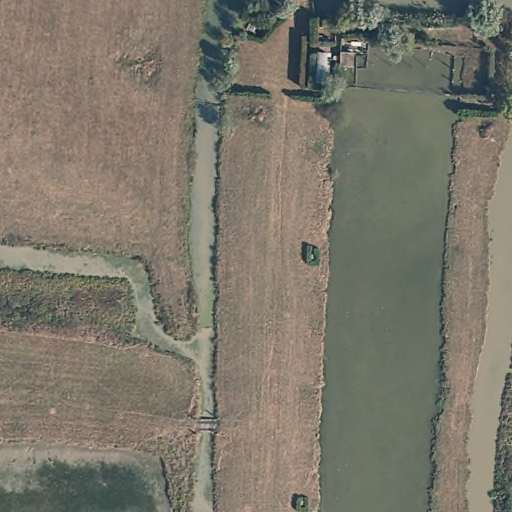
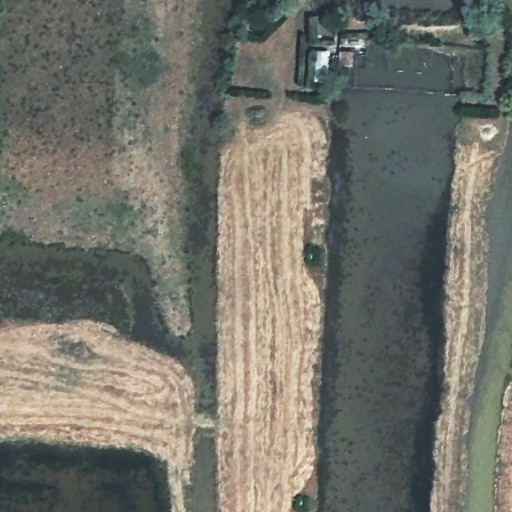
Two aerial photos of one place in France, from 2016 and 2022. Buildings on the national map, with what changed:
unchanged [(330,86),(307,85),(310,53),(332,54),(330,86)]

